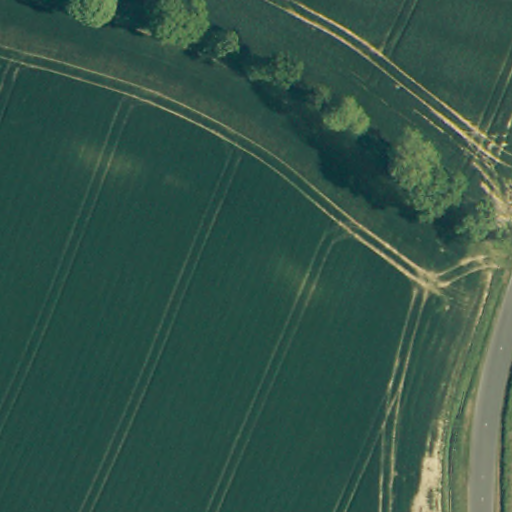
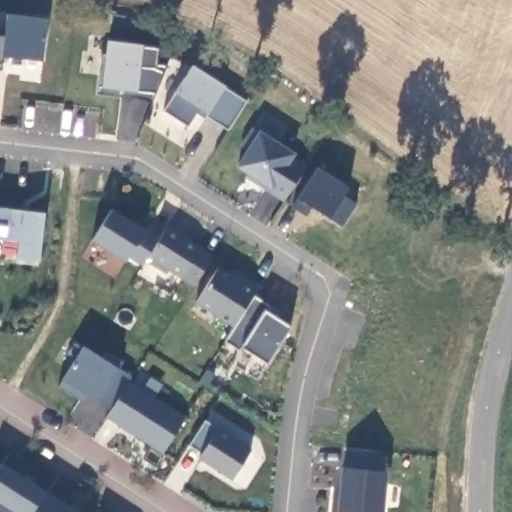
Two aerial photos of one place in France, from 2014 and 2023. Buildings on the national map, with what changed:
new [(2,56),(1,63),(2,71),(0,70),(0,36),(4,36),(6,15),(47,19),(42,61),(2,56)]
new [(153,100),(100,95),(102,86),(107,43),(142,46),(159,48),(156,64),(169,65),(153,100)]
new [(226,131),(200,114),(189,128),(164,111),(175,93),(194,65),(226,88),(246,101),(226,131)]
new [(327,219),(310,208),(306,214),(292,205),(298,198),(290,192),(283,202),(246,180),(251,176),(236,166),(259,129),(319,166),(350,186),(345,195),(357,203),(341,227),(327,219)]
new [(17,260),(18,241),(0,239),(0,207),(47,212),(41,262),(17,260)]
new [(192,286),(148,257),(141,267),(128,257),(124,261),(91,240),(112,210),(144,231),(157,240),(165,226),(214,257),(192,286)]
new [(216,266),(231,276),(235,271),(260,286),(253,295),(280,313),(277,319),(293,328),(268,367),(240,350),(225,341),(233,327),(195,304),(216,266)]
new [(159,452),(105,417),(108,412),(97,404),(85,397),(80,403),(57,386),(61,380),(83,344),(102,357),(107,351),(124,362),(120,367),(132,376),(128,382),(184,416),(159,452)]
new [(231,480),(198,458),(200,454),(188,445),(204,420),(251,449),(231,480)]
new [(387,472),(384,512),(339,512),(343,465),(344,448),(385,452),(387,472)]
new [(0,467),(9,454),(30,467),(25,478),(79,512),(0,512),(0,467)]

